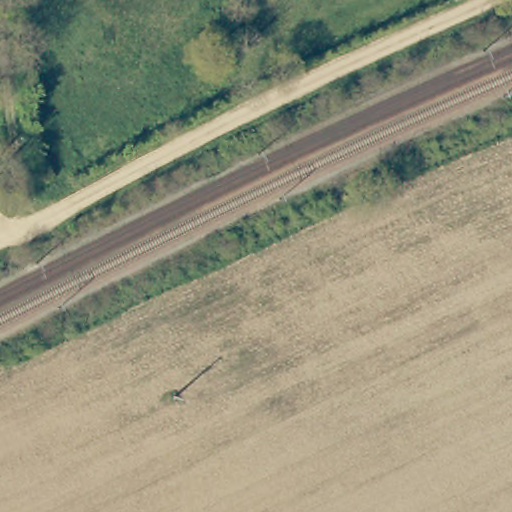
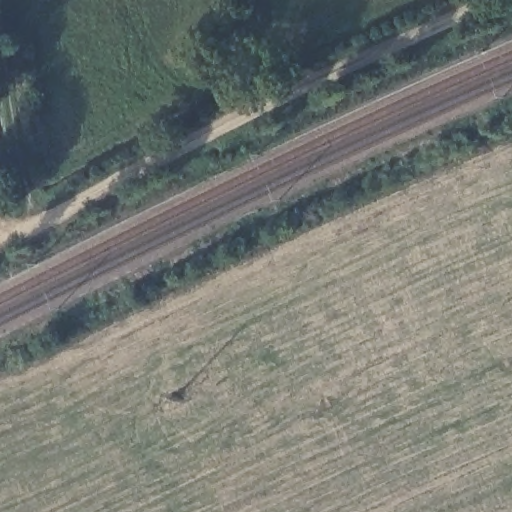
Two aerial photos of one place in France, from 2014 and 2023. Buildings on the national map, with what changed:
[]

